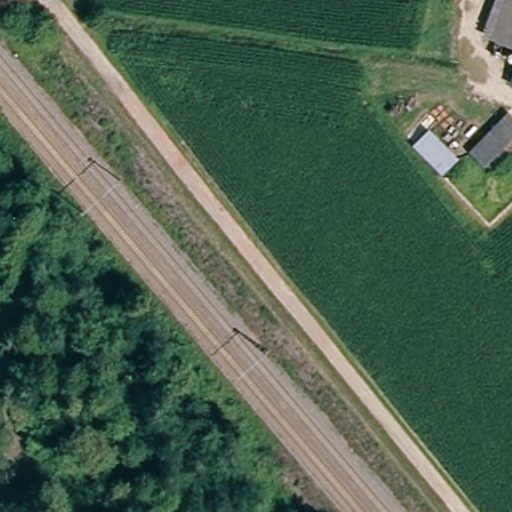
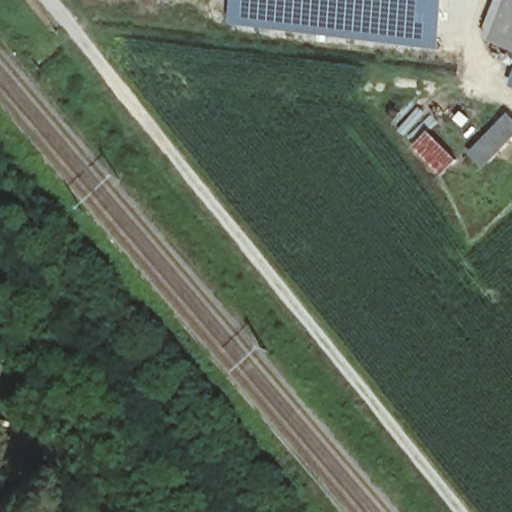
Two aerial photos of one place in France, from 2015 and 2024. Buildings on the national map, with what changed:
new [(228,0),(445,0),(438,49),(225,23),(228,0)]
unchanged [(502,0),(512,0),(512,43),(490,36),(502,0)]
unchanged [(505,115),(512,121),(512,135),(487,167),(474,156),(497,126),(505,115)]
unchanged [(426,131),(458,154),(445,170),(413,145),(426,131)]

